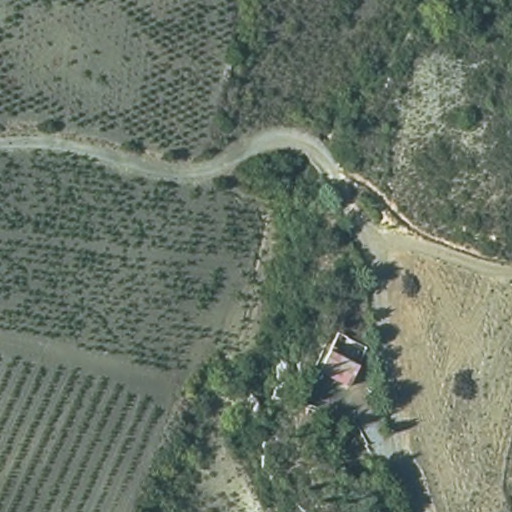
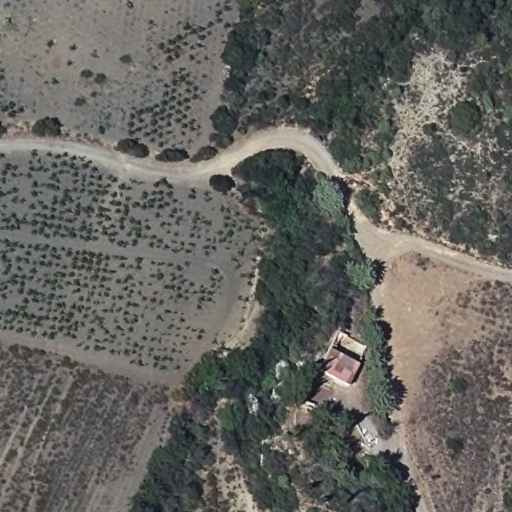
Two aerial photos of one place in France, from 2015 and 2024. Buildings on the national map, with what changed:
unchanged [(317,365),(328,343),(361,360),(350,382),(317,365)]

